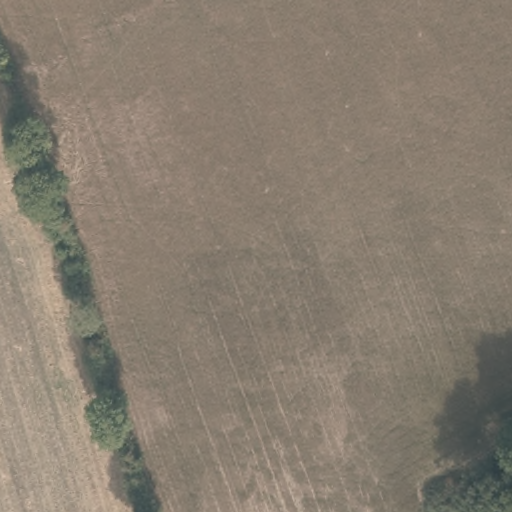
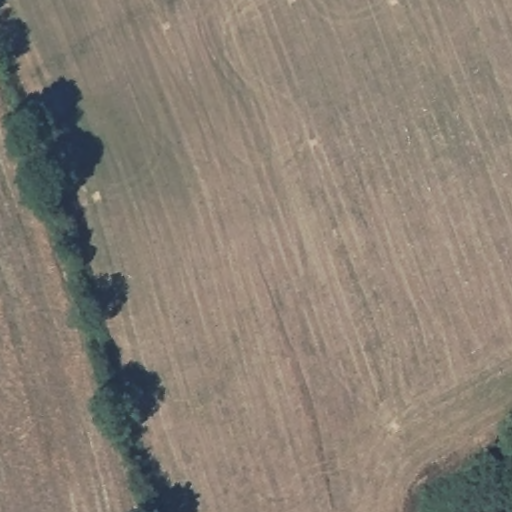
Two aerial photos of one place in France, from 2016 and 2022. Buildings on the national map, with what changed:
[]

